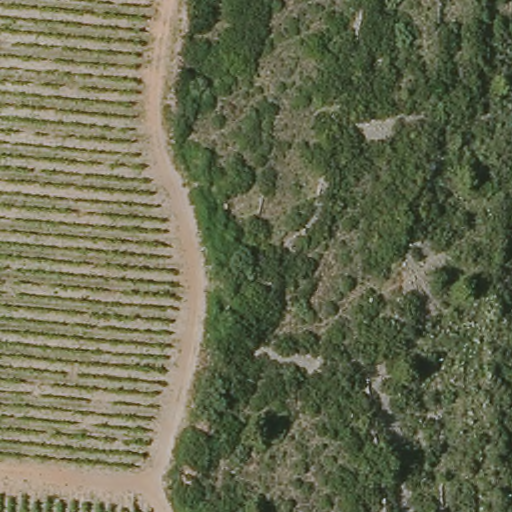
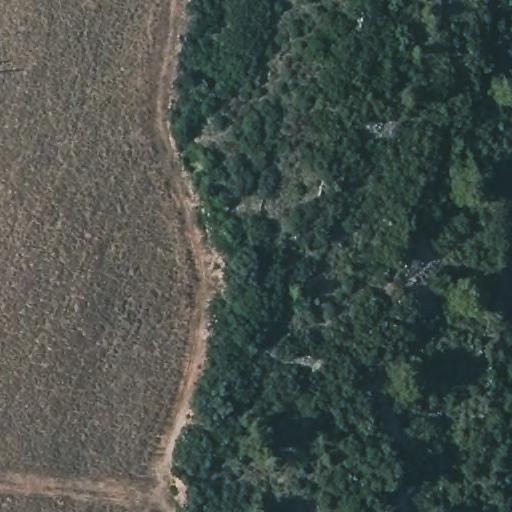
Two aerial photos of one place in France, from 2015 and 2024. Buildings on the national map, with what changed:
[]

